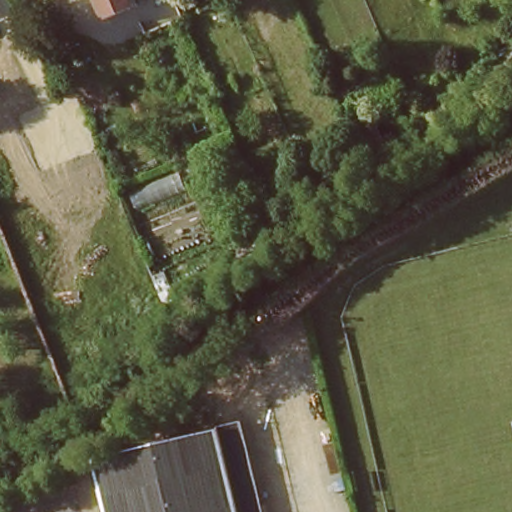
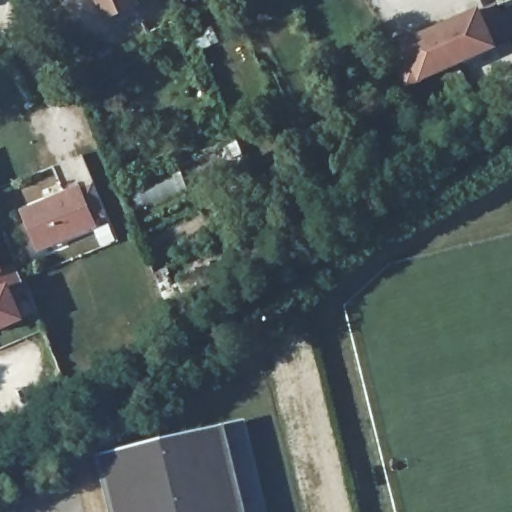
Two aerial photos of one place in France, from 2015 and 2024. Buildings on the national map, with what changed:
unchanged [(137,9),(109,22),(99,0),(133,0),(137,9)]
new [(408,42),(482,9),(483,12),(499,5),(512,36),(512,38),(408,85),(394,52),(410,45),(408,42)]
new [(108,217),(96,221),(99,228),(38,253),(21,210),(80,186),(81,189),(93,186),(108,217)]
new [(18,264),(26,281),(12,287),(25,318),(0,329),(0,272),(18,264)]
unchanged [(218,431),(239,512),(113,512),(106,482),(100,460),(218,431)]

